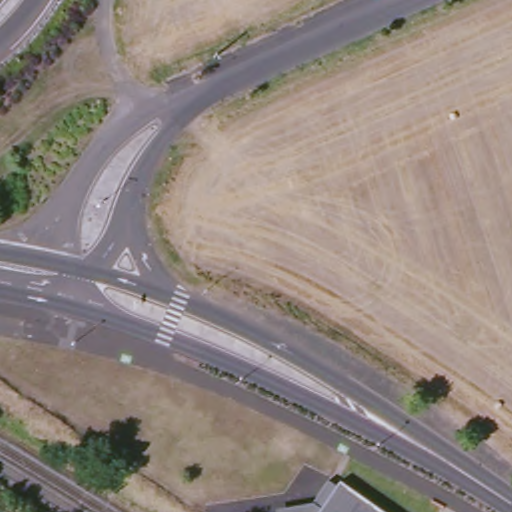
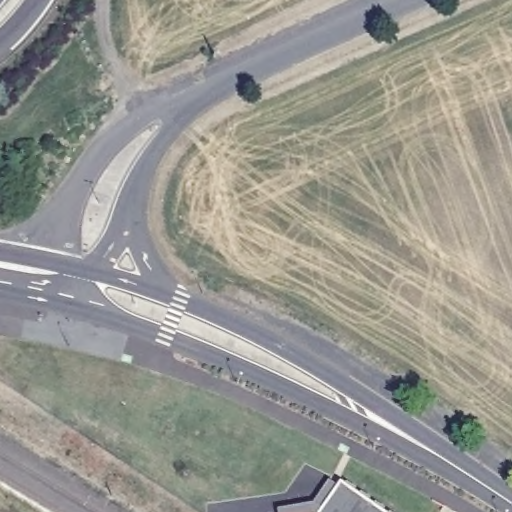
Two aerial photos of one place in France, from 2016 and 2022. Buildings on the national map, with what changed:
unchanged [(281,510),(316,504),(333,481),(341,487),(344,483),(348,486),(349,483),(359,489),(358,493),(362,496),(364,493),(374,499),(372,503),(376,506),(379,503),(388,510),(386,512),(281,512),(281,510)]

